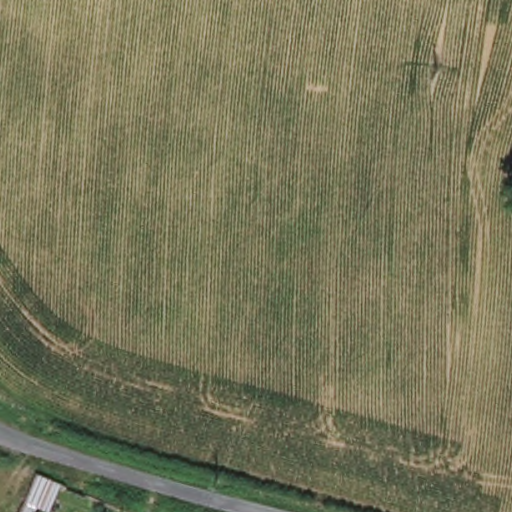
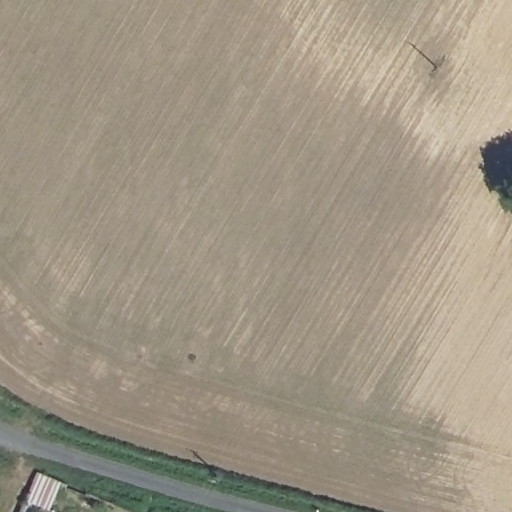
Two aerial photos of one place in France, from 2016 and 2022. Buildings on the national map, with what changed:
unchanged [(57,512),(21,512),(39,472),(69,484),(57,512)]

